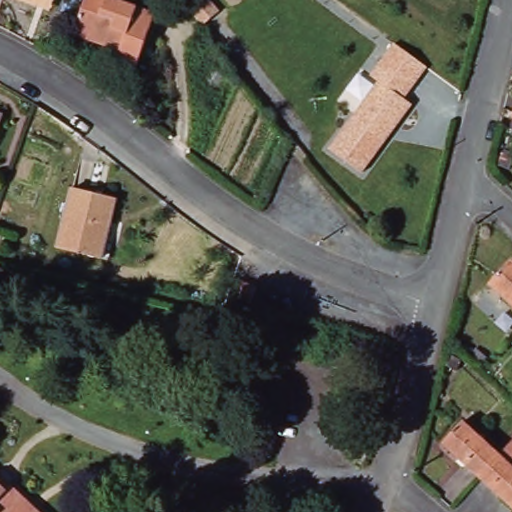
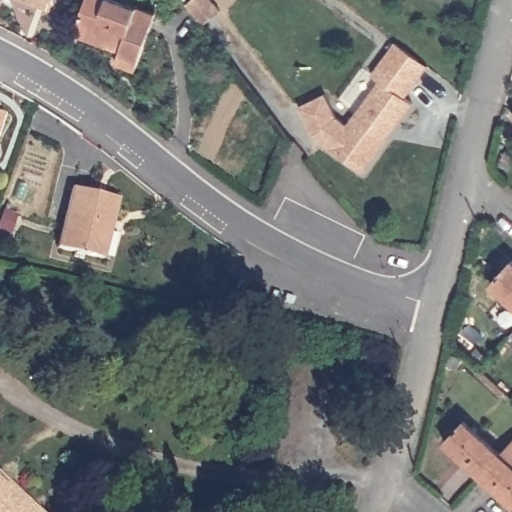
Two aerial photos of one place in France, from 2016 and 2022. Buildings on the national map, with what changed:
unchanged [(48,8),(26,0),(52,0),(48,8)]
unchanged [(84,0),(98,0),(149,18),(130,74),(112,67),(118,48),(73,32),(84,0)]
unchanged [(425,65),(404,94),(414,102),(364,167),(331,144),(376,80),(371,75),(394,40),(425,65)]
new [(331,144),(327,149),(311,136),(297,107),(324,94),(335,116),(345,124),(331,144)]
unchanged [(0,145),(0,115),(9,119),(0,145)]
unchanged [(72,190),(117,201),(102,260),(57,249),(72,190)]
unchanged [(492,282),(512,260),(512,300),(492,282)]
unchanged [(230,268),(247,275),(242,290),(224,283),(230,268)]
unchanged [(449,356),(437,353),(440,340),(452,343),(449,356)]
unchanged [(440,439),(460,418),(497,453),(478,475),(440,439)]
unchanged [(478,475),(497,453),(512,438),(512,507),(478,475)]
unchanged [(0,474),(7,481),(0,489),(0,474)]
unchanged [(40,512),(0,512),(0,489),(7,481),(35,507),(40,512)]

